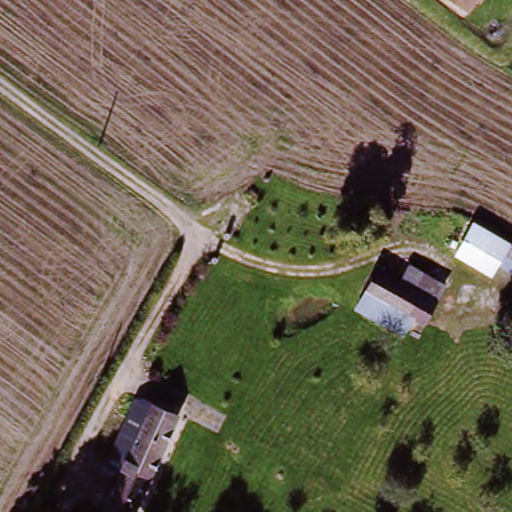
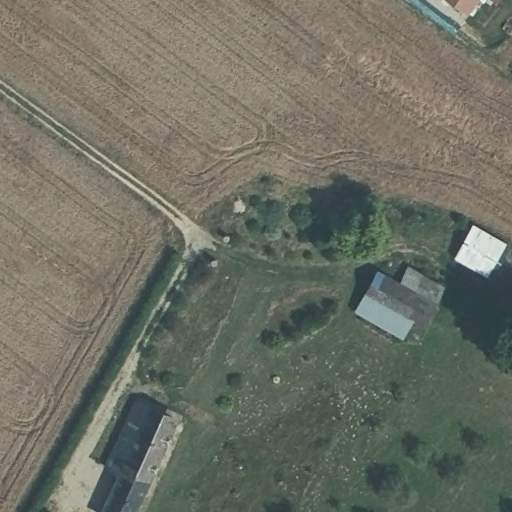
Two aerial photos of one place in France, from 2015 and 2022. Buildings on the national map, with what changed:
unchanged [(468,9),(457,0),(475,0),(468,9)]
unchanged [(498,268),(493,276),(455,255),(475,224),(512,245),(512,248),(498,268)]
unchanged [(498,268),(512,248),(512,274),(498,268)]
unchanged [(412,264),(447,287),(422,330),(410,322),(423,296),(401,282),(412,264)]
unchanged [(367,296),(380,269),(401,282),(423,296),(410,322),(367,296)]
unchanged [(183,415),(133,512),(96,512),(117,473),(102,464),(115,438),(138,392),(141,393),(183,415)]

